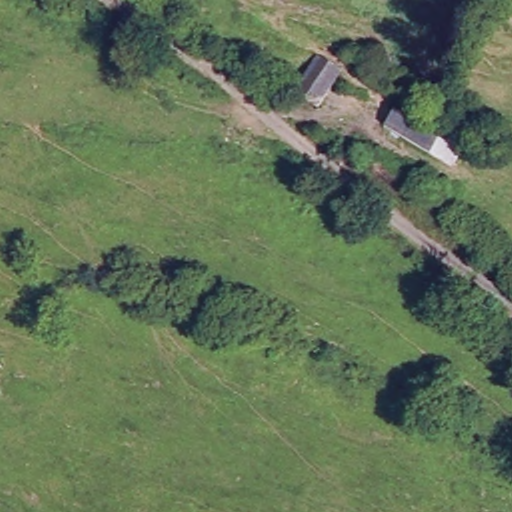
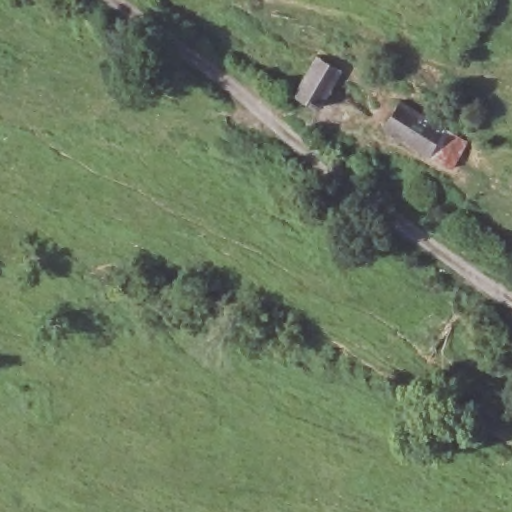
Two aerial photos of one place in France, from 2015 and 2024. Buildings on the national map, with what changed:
unchanged [(292,90),(316,49),(343,65),(318,107),(305,99),(292,90)]
unchanged [(412,107),(457,137),(440,164),(391,136),(412,107)]

